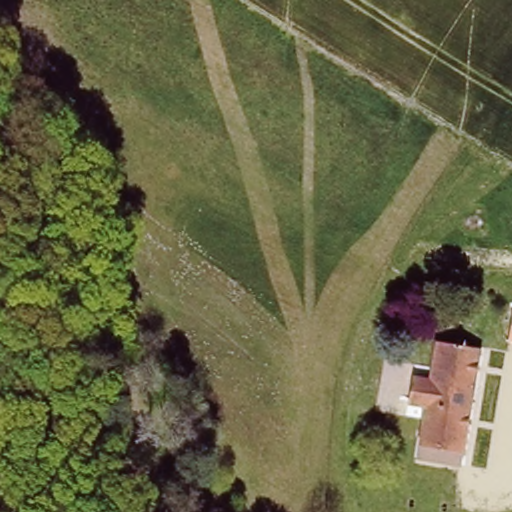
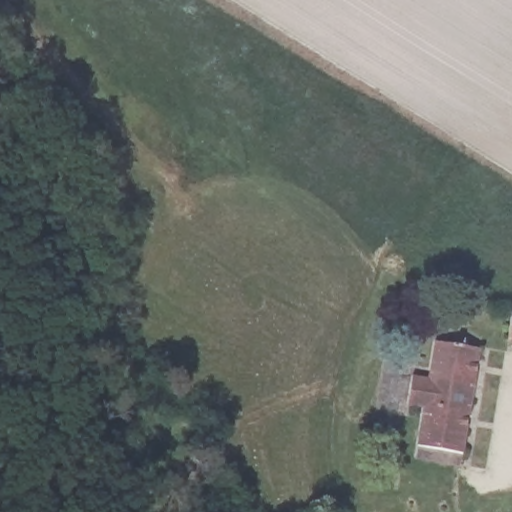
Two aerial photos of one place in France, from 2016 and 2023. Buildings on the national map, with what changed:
unchanged [(512,340),(509,339),(510,316),(512,316),(512,340)]
unchanged [(459,462),(421,456),(424,428),(427,408),(407,406),(410,371),(420,372),(430,374),(434,347),(435,327),(460,329),(474,331),(459,462)]

